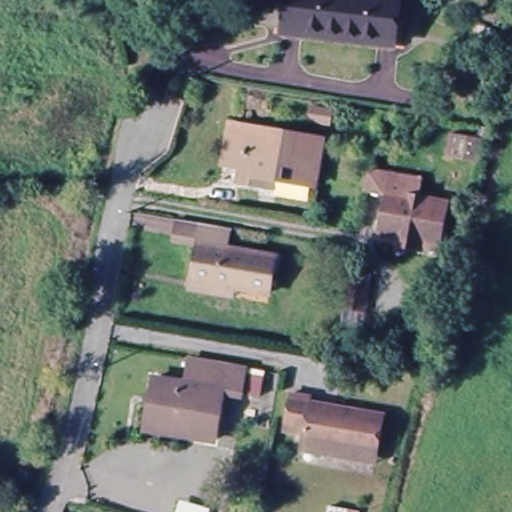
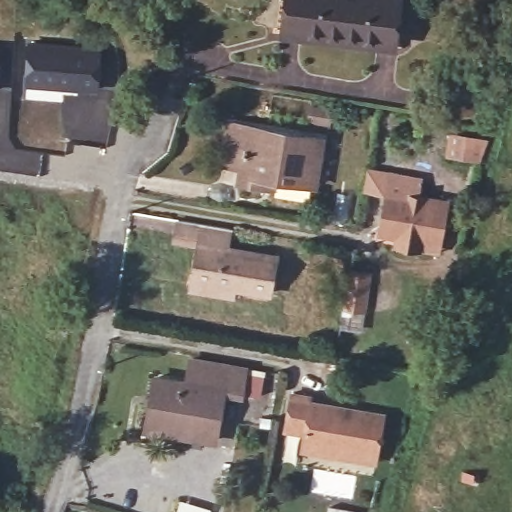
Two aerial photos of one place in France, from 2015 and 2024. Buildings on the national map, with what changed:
unchanged [(393,0),(388,44),(280,32),(284,0),(393,0)]
unchanged [(490,46),(463,41),(467,21),(494,27),(490,46)]
new [(24,42),(101,43),(100,88),(97,88),(97,91),(57,90),(23,86),(24,42)]
new [(0,63),(0,49),(1,49),(0,63)]
new [(23,86),(57,90),(97,91),(97,88),(100,88),(115,89),(107,145),(67,140),(65,152),(20,145),(19,131),(23,86)]
unchanged [(331,128),(307,124),(309,111),(333,115),(331,128)]
unchanged [(323,141),(315,188),(275,181),(273,190),(241,185),(244,170),(225,167),(232,126),(323,141)]
unchanged [(475,163),(441,157),(446,131),(480,137),(475,163)]
unchanged [(407,247),(389,244),(390,234),(377,231),(383,192),(363,188),(367,169),(415,178),(411,197),(440,202),(439,214),(434,242),(432,252),(407,247)]
unchanged [(192,285),(195,273),(200,239),(176,234),(180,214),(231,223),(227,241),(275,249),(268,287),(237,281),(235,293),(192,285)]
unchanged [(351,260),(374,264),(367,303),(345,300),(351,260)]
unchanged [(146,432),(156,382),(189,387),(194,363),(243,372),(239,396),(224,394),(215,444),(146,432)]
unchanged [(262,401),(246,398),(250,378),(265,381),(262,401)]
unchanged [(307,453),(308,445),(310,435),(290,432),(296,396),(316,399),(315,404),(387,417),(380,457),(380,465),(307,453)]
unchanged [(355,512),(356,512),(335,512),(335,508),(355,512)]

